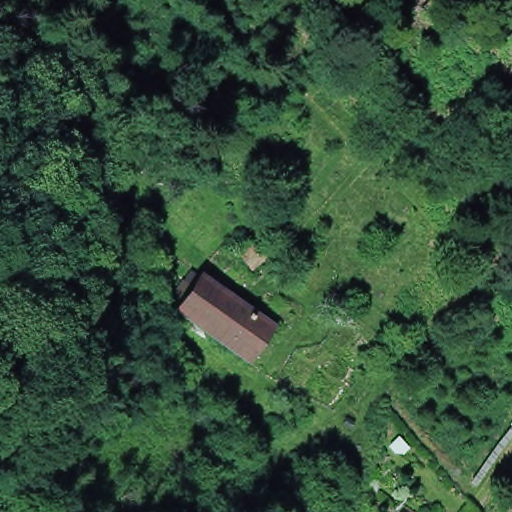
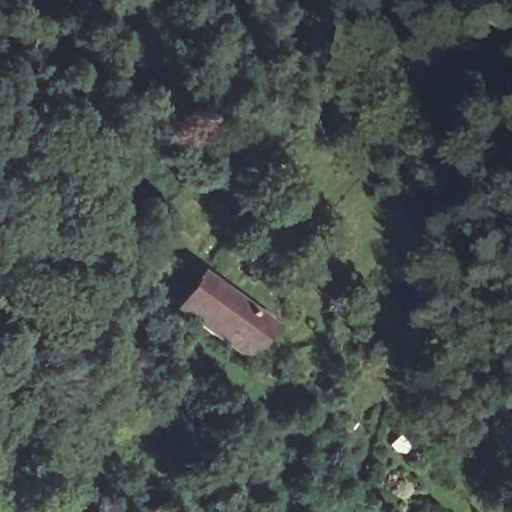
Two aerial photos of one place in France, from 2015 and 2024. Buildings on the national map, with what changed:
unchanged [(251,269),(243,259),(258,247),(266,257),(251,269)]
unchanged [(274,333),(251,365),(176,312),(200,280),(274,333)]

